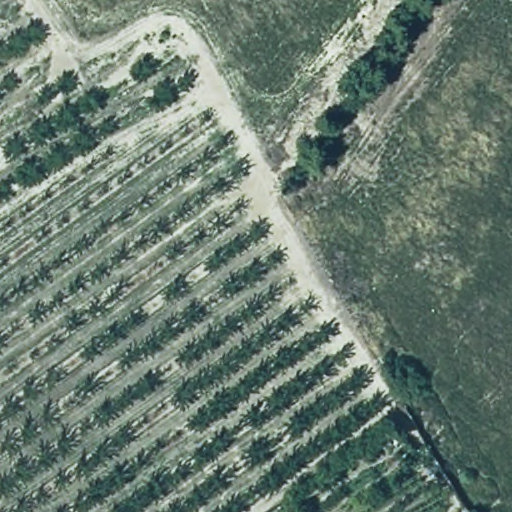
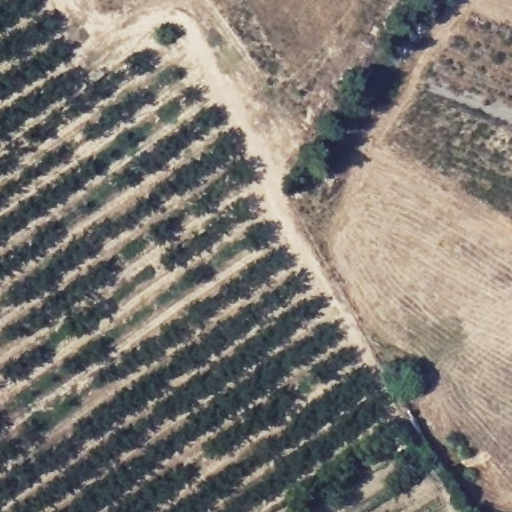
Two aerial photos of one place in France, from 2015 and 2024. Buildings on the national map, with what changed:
unchanged [(425,456),(433,479),(419,483),(412,463),(425,456)]

